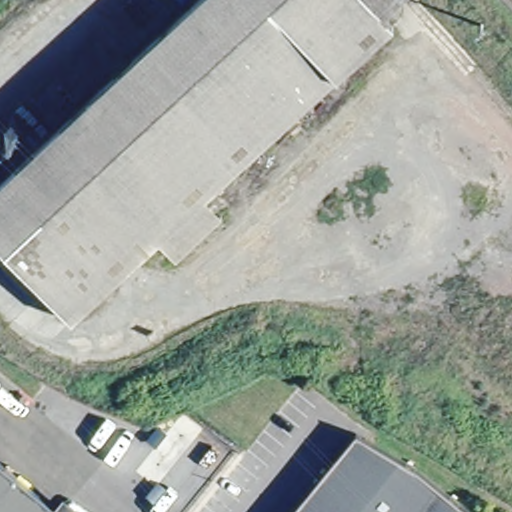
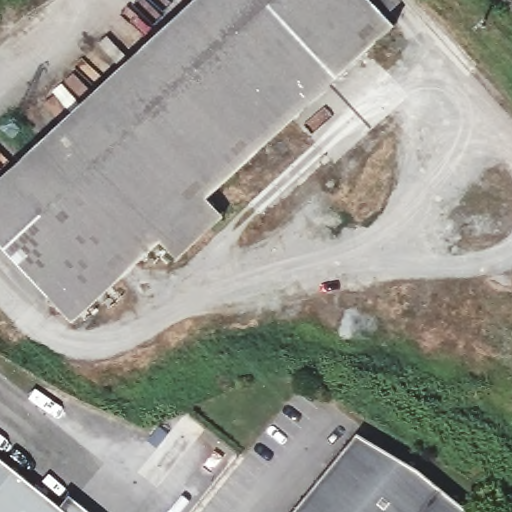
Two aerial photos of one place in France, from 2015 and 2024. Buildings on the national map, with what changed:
unchanged [(68,312),(0,237),(0,173),(141,49),(196,0),(370,0),(384,15),(392,25),(358,56),(284,121),(201,195),(156,234),(68,312)]
unchanged [(370,0),(401,0),(384,15),(370,0)]
unchanged [(217,213),(172,253),(156,234),(201,195),(217,213)]
unchanged [(361,436),(422,473),(469,512),(298,512),(361,436)]
unchanged [(59,505),(68,512),(0,512),(0,460),(59,505)]
unchanged [(59,505),(65,498),(82,512),(68,512),(59,505)]

